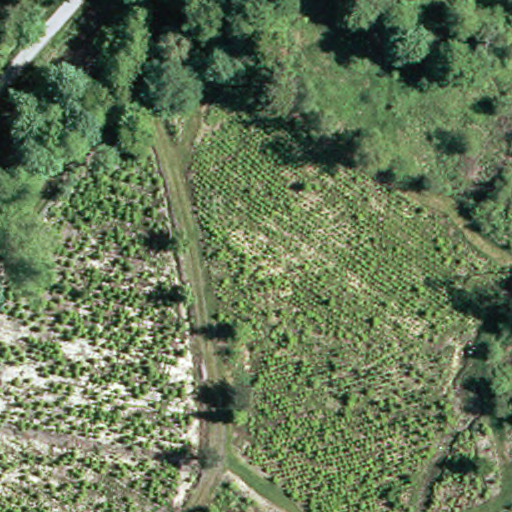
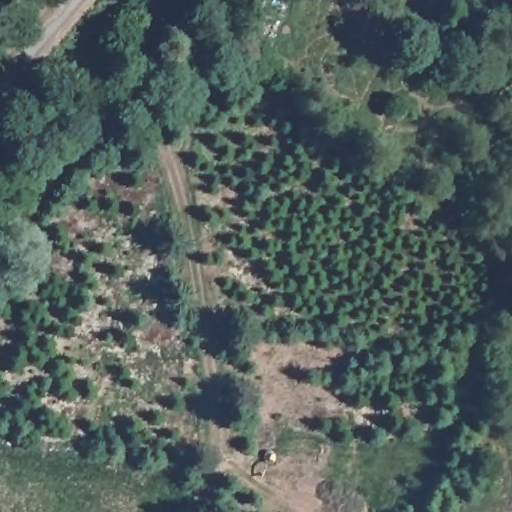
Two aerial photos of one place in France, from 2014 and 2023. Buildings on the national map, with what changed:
unchanged [(97,110),(62,85),(75,66),(110,95),(97,110)]

